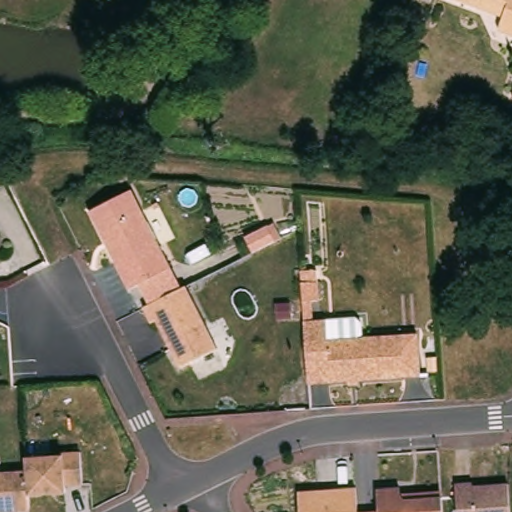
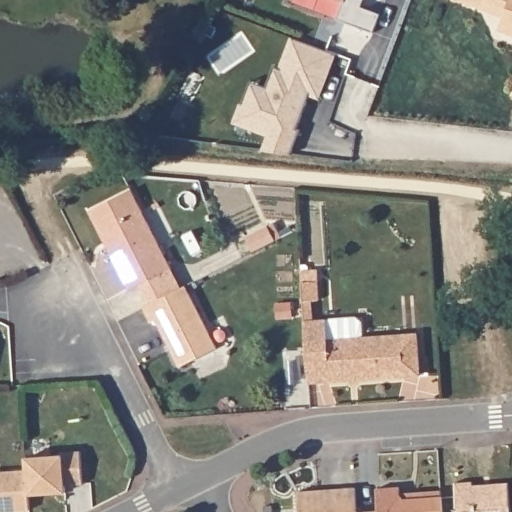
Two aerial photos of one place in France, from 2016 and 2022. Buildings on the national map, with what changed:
new [(361,8),(380,15),(373,33),(337,20),(344,2),(337,0),(364,0),(361,8)]
unchanged [(502,23),(504,17),(485,10),(456,0),(512,0),(512,35),(499,30),(502,23)]
new [(291,155),(262,150),(267,137),(233,124),(240,104),(243,105),(251,82),(266,87),(274,67),(279,69),(291,37),(336,54),(320,99),(309,96),(297,128),(299,129),(291,155)]
unchanged [(171,268),(129,289),(90,211),(132,190),(171,268)]
unchanged [(268,225),(276,241),(254,252),(246,237),(268,225)]
unchanged [(217,349),(180,367),(156,320),(151,323),(144,307),(186,286),(217,349)]
unchanged [(305,321),(327,320),(328,340),(402,335),(405,377),(330,382),(309,384),(308,366),(305,321)]
unchanged [(26,458),(62,455),(62,453),(81,451),(83,484),(66,485),(66,493),(29,495),(29,493),(27,470),(26,458)]
unchanged [(27,470),(29,493),(29,495),(30,510),(8,512),(0,512),(0,472),(27,470)]
unchanged [(473,482),(473,486),(508,483),(510,512),(457,512),(456,484),(473,482)]
unchanged [(377,489),(400,487),(401,495),(405,499),(442,497),(443,512),(371,512),(378,511),(377,489)]
unchanged [(356,488),(357,512),(299,512),(298,492),(356,488)]

